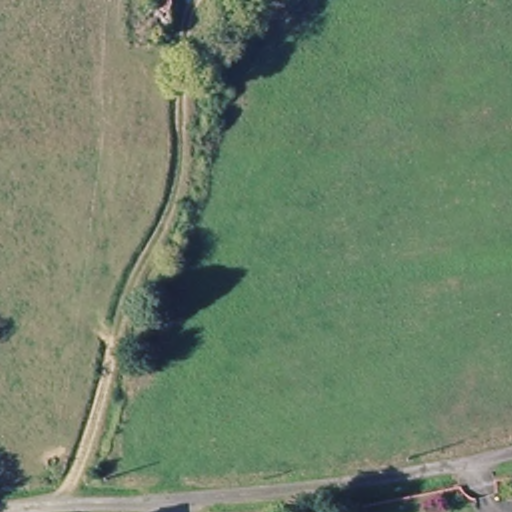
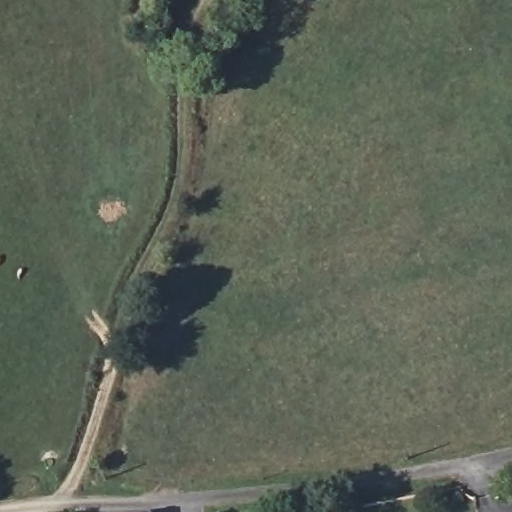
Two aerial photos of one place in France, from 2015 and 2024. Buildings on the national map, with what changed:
unchanged [(169,40),(141,37),(146,0),(173,0),(169,40)]

